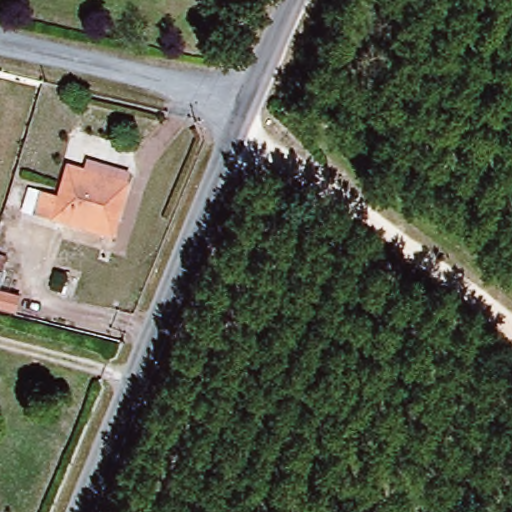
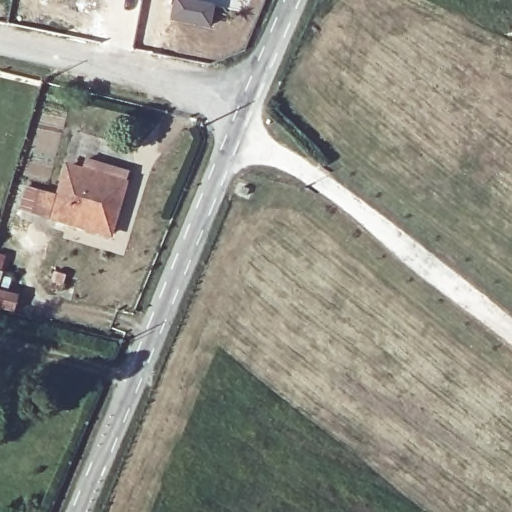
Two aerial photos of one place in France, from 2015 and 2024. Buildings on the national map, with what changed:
new [(195,0),(216,5),(211,30),(170,20),(174,0),(195,0)]
unchanged [(55,224),(61,197),(66,174),(81,178),(84,166),(128,177),(125,189),(113,239),(55,224)]
unchanged [(61,197),(55,224),(16,214),(23,188),(61,197)]
unchanged [(9,297),(2,323),(0,322),(0,295),(9,297)]

